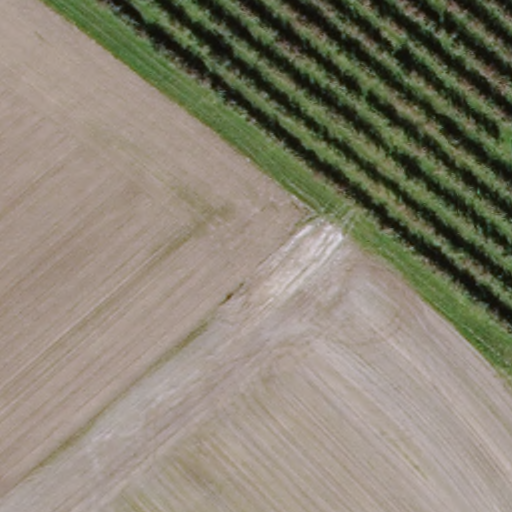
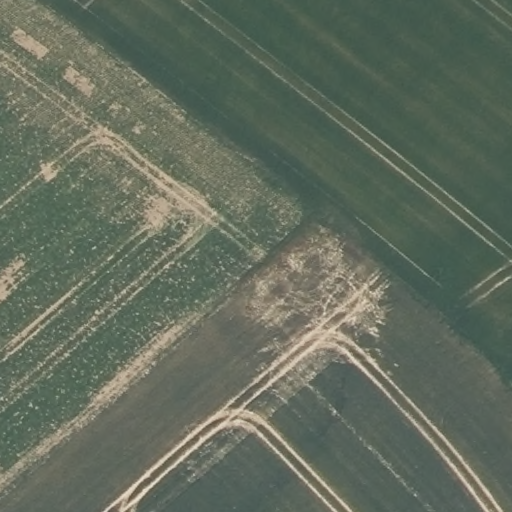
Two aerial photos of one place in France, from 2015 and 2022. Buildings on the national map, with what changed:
[]

